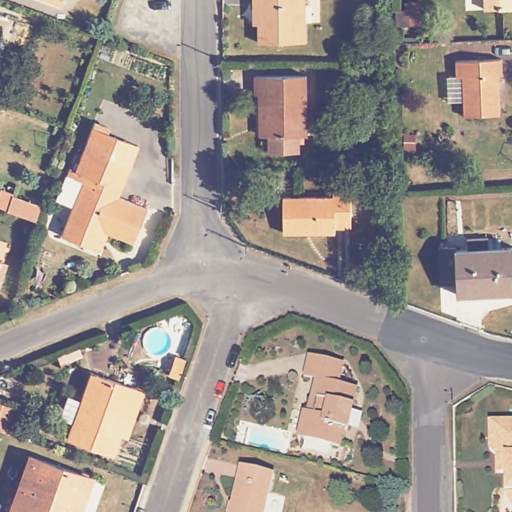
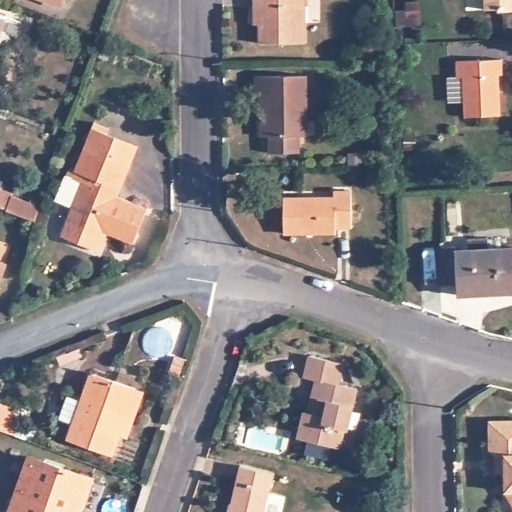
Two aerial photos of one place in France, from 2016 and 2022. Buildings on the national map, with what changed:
unchanged [(48,0),(64,0),(62,6),(48,0)]
unchanged [(301,22),(301,43),(257,43),(256,6),(251,6),(251,0),(296,0),(296,22),(301,22)]
unchanged [(482,11),(482,0),(512,0),(512,10),(482,11)]
unchanged [(426,24),(402,25),(401,1),(426,1),(426,24)]
unchanged [(0,27),(0,12),(5,14),(0,27)]
unchanged [(500,74),(496,74),(496,116),(461,117),(460,75),(453,75),(453,60),(500,59),(500,74)]
unchanged [(308,121),(302,121),(303,152),(272,153),(272,136),(267,136),(266,95),(257,95),(257,76),(307,76),(308,121)]
unchanged [(92,252),(58,237),(84,177),(72,173),(93,123),(109,129),(106,135),(136,147),(127,168),(115,197),(145,210),(131,245),(107,235),(99,254),(92,252)]
unchanged [(335,191),(353,190),(353,228),(338,229),(338,235),(285,236),(284,198),(335,197),(335,191)]
unchanged [(37,219),(9,209),(13,196),(42,205),(37,219)]
unchanged [(443,248),(459,248),(460,251),(471,250),(471,239),(492,237),(492,249),(512,248),(512,293),(462,295),(461,285),(445,285),(443,248)]
unchanged [(0,278),(0,260),(6,262),(0,278)]
unchanged [(341,365),(335,385),(355,390),(343,432),(340,431),(335,449),(294,438),(301,412),(305,413),(313,381),(302,378),(308,356),(341,365)]
unchanged [(62,436),(69,419),(55,413),(64,390),(78,395),(87,369),(105,377),(141,391),(124,435),(116,432),(107,454),(62,436)]
unchanged [(9,430),(0,427),(0,401),(17,406),(9,430)]
unchanged [(493,470),(487,470),(487,452),(482,446),(482,418),(512,418),(512,512),(510,512),(503,501),(497,489),(497,470),(493,470)]
unchanged [(90,482),(78,512),(8,512),(27,459),(90,482)]
unchanged [(225,502),(227,503),(237,464),(267,472),(258,512),(222,512),(225,502)]

